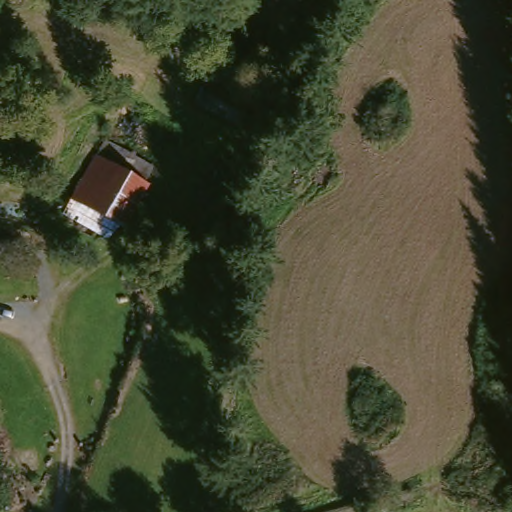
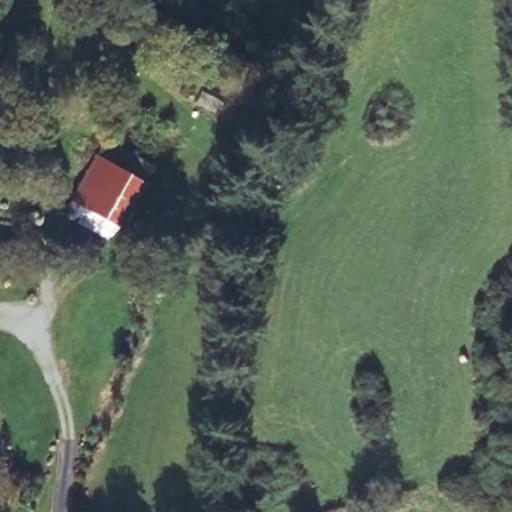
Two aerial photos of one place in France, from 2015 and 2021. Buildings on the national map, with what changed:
unchanged [(261,103),(245,136),(190,111),(207,76),(262,101),(261,103)]
unchanged [(57,219),(101,144),(148,170),(103,246),(57,219)]

